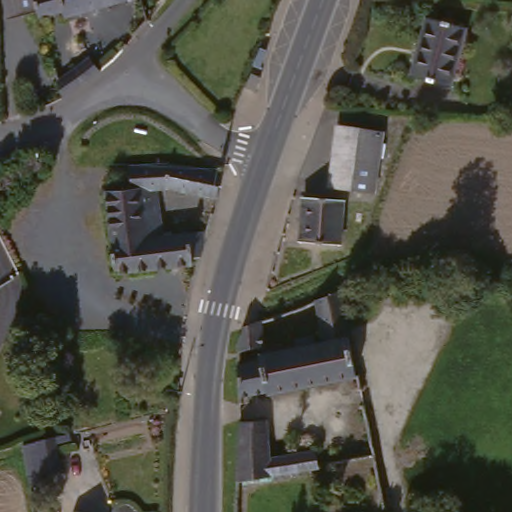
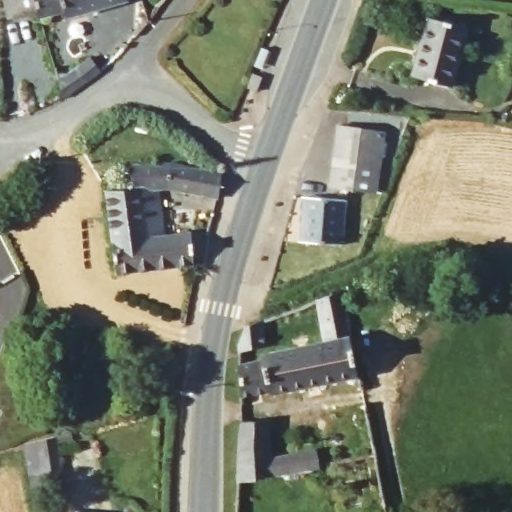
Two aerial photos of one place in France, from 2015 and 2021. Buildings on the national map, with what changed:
unchanged [(0,0),(138,0),(64,23),(62,16),(38,23),(36,19),(6,27),(0,7),(0,0)]
unchanged [(451,89),(409,77),(426,16),(467,27),(451,89)]
unchanged [(93,57),(101,73),(66,99),(59,81),(93,57)]
unchanged [(247,76),(254,80),(249,92),(241,89),(247,76)]
unchanged [(374,199),(329,194),(339,136),(340,130),(384,134),(386,139),(381,165),(379,166),(374,199)]
unchanged [(106,190),(132,187),(131,167),(169,164),(191,167),(223,172),(221,195),(216,194),(171,187),(146,190),(149,219),(154,219),(156,236),(113,243),(106,190)]
unchanged [(304,200),(341,203),(338,249),(299,246),(304,200)]
unchanged [(117,272),(113,243),(156,236),(202,231),(204,245),(205,252),(203,254),(194,255),(194,262),(117,272)]
unchanged [(268,403),(266,402),(239,407),(239,372),(266,366),(264,357),(301,348),(299,340),(316,336),(318,344),(326,342),(316,302),(339,297),(358,382),(268,403)]
unchanged [(263,324),(263,349),(240,356),(242,327),(263,324)]
unchanged [(269,463),(314,458),(315,476),(236,486),(239,425),(253,431),(268,429),(269,463)]
unchanged [(61,474),(42,477),(26,480),(21,450),(36,447),(43,445),(51,443),(56,442),(61,474)]

